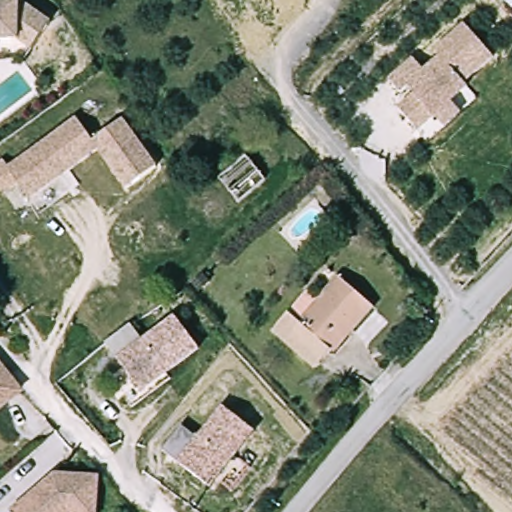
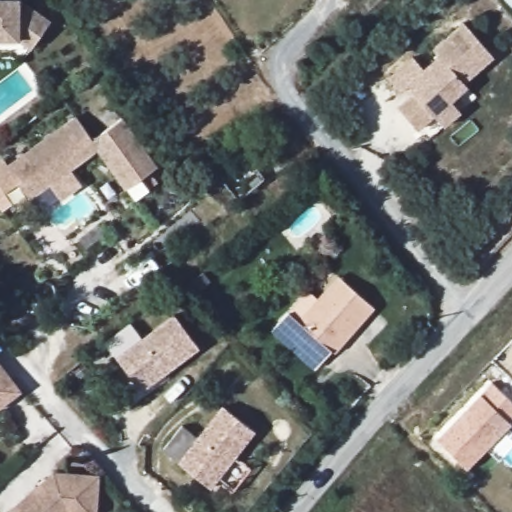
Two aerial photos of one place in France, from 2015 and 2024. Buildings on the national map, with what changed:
unchanged [(62,12),(39,37),(24,25),(0,28),(0,0),(48,0),(62,12)]
unchanged [(445,105),(457,119),(442,132),(430,119),(414,134),(394,113),(412,96),(406,90),(399,96),(387,84),(412,60),(423,71),(439,56),(436,52),(466,24),(496,57),(465,86),(445,105)]
unchanged [(126,192),(98,149),(27,199),(16,181),(1,192),(0,191),(0,159),(6,165),(76,116),(92,140),(123,119),(157,170),(126,192)]
unchanged [(349,287),(378,305),(326,366),(278,338),(286,326),(302,335),(349,287)]
unchanged [(202,346),(148,388),(120,356),(107,340),(109,338),(130,323),(143,340),(173,318),(202,346)]
unchanged [(18,385),(0,400),(0,367),(18,385)]
new [(512,407),(512,417),(507,422),(508,424),(468,465),(437,436),(489,384),(512,407)]
unchanged [(179,431),(197,441),(221,411),(254,430),(211,483),(178,465),(161,454),(179,431)]
unchanged [(73,512),(17,512),(13,506),(54,471),(101,472),(100,512),(73,512)]

